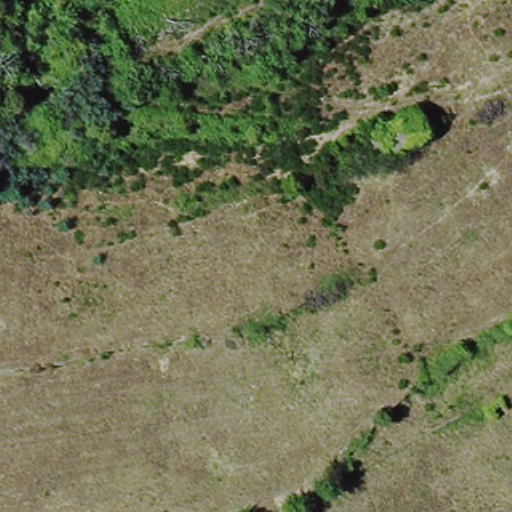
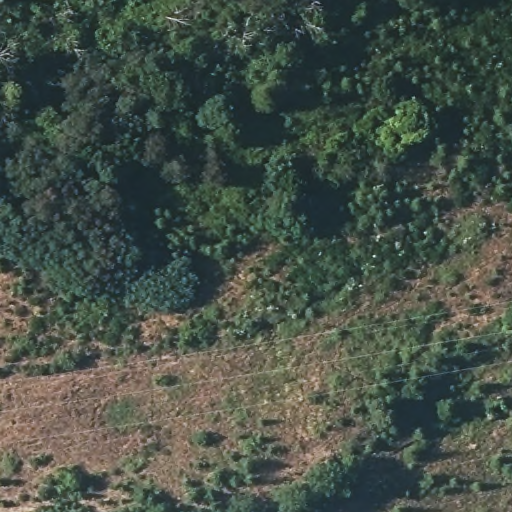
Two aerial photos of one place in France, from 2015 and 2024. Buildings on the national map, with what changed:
unchanged [(498,416),(485,422),(481,407),(495,403),(498,416)]

